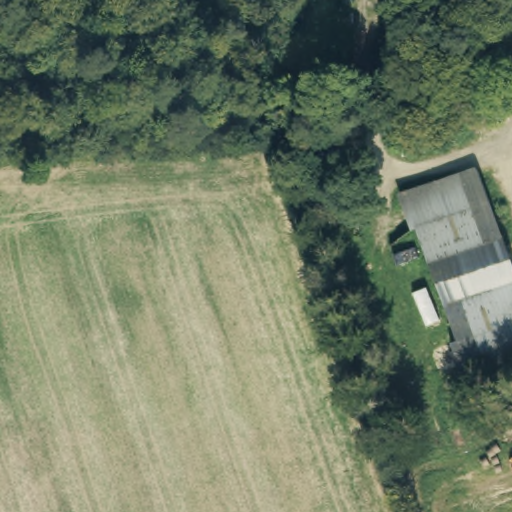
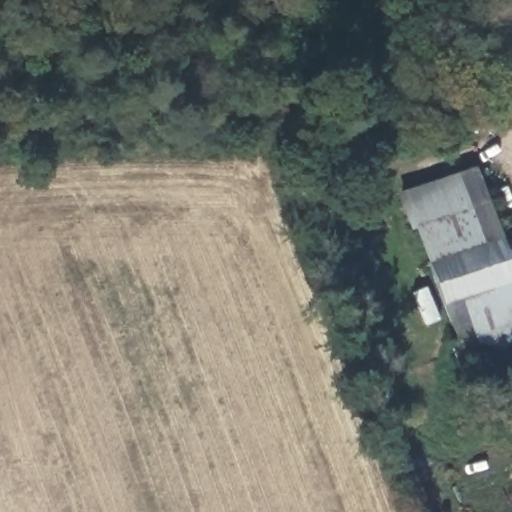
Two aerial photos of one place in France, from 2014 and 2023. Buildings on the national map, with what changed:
unchanged [(423,251),(402,192),(474,166),(495,225),(423,251)]
unchanged [(423,251),(495,225),(511,270),(439,295),(423,251)]
unchanged [(512,274),(512,338),(461,356),(439,295),(511,270),(512,274)]

